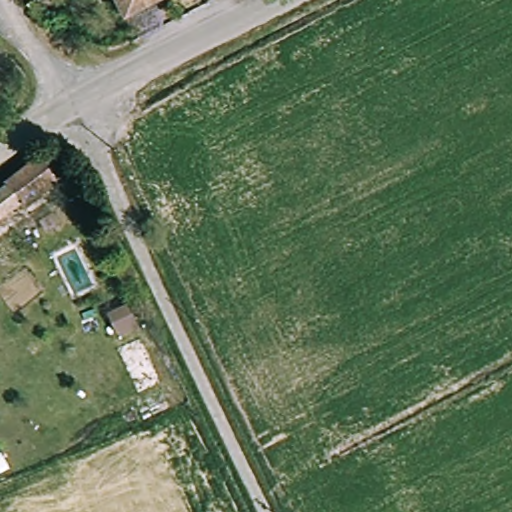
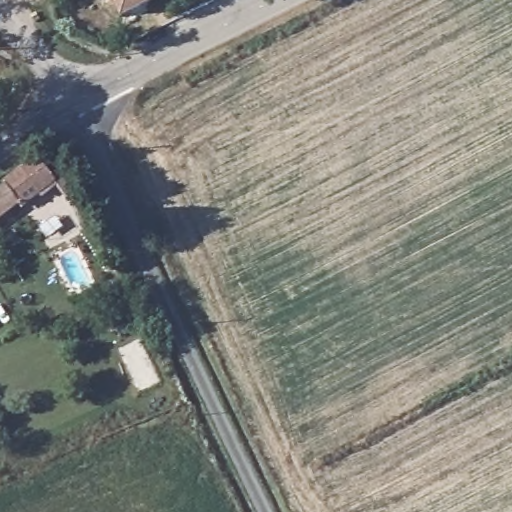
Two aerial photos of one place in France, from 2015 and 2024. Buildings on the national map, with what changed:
unchanged [(123,16),(114,0),(155,0),(123,16)]
unchanged [(58,182),(0,224),(0,182),(37,155),(58,182)]

